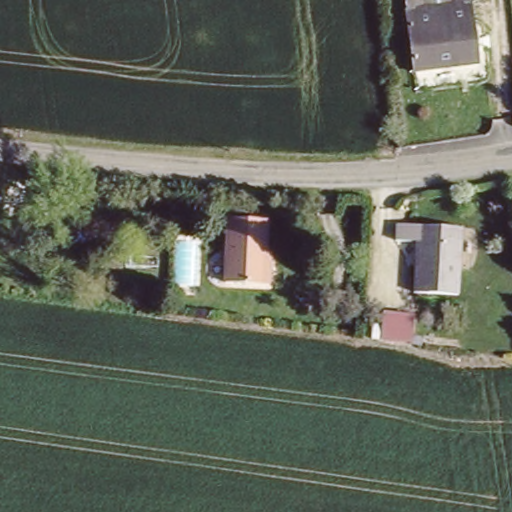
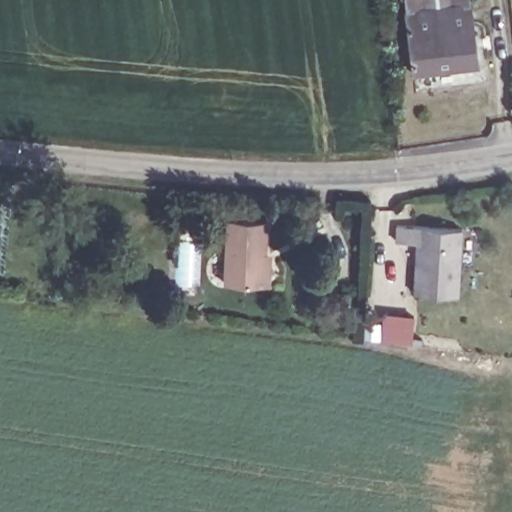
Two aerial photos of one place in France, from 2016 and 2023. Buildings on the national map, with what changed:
unchanged [(406,0),(473,0),(481,62),(415,70),(406,0)]
unchanged [(276,260),(276,286),(233,284),(236,218),(274,220),(273,255),(277,255),(276,260)]
unchanged [(419,241),(398,240),(399,224),(464,226),(461,293),(417,291),(419,241)]
unchanged [(317,314),(318,288),(334,290),(334,315),(317,314)]
unchanged [(381,338),(381,317),(412,319),(411,342),(381,338)]

